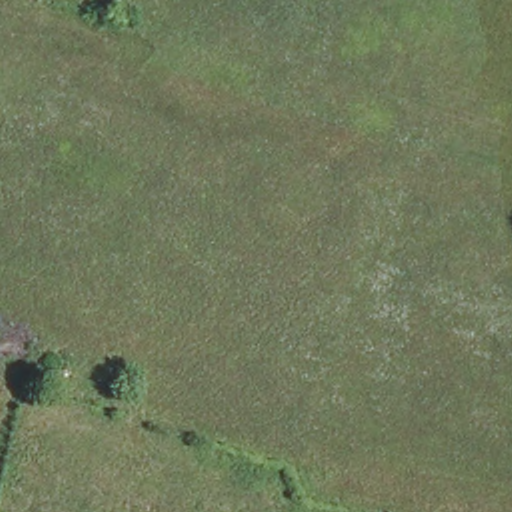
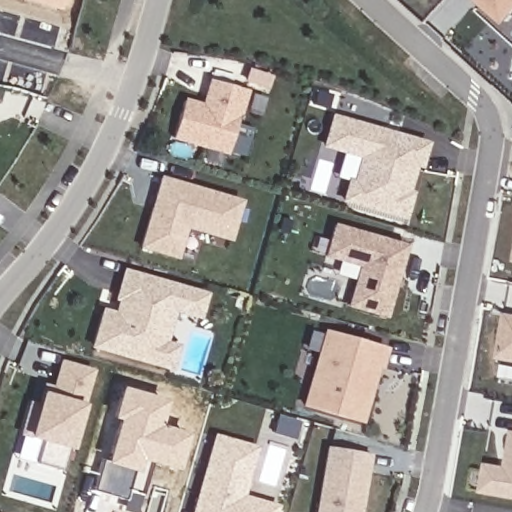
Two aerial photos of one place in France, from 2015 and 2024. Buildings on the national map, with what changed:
new [(59,11),(22,0),(63,0),(59,11)]
new [(512,24),(511,26),(480,1),(481,0),(512,0),(512,24)]
new [(247,89),(241,115),(238,115),(227,155),(172,140),(184,98),(201,102),(208,79),(247,89)]
new [(347,180),(337,178),(344,154),(322,148),(331,113),(429,141),(422,169),(417,168),(410,190),(414,191),(407,221),(341,202),(347,180)]
new [(243,200),(230,242),(186,229),(177,260),(138,249),(159,176),(243,200)]
new [(358,266),(323,257),(332,223),(407,244),(385,319),(346,307),(358,266)]
new [(208,292),(200,320),(175,313),(167,341),(180,344),(172,372),(89,348),(101,307),(114,311),(116,302),(112,300),(122,268),(208,292)]
new [(512,316),(512,359),(502,357),(510,316),(512,316)]
new [(323,329),(388,347),(382,369),(378,368),(362,424),(301,407),(323,329)]
new [(94,369),(84,406),(72,450),(64,470),(35,463),(44,442),(27,438),(28,436),(20,435),(29,400),(37,401),(40,391),(43,392),(42,383),(52,385),(60,359),(94,369)]
new [(119,386),(165,400),(159,425),(187,433),(176,471),(147,462),(140,495),(125,492),(123,500),(90,489),(99,459),(103,461),(115,420),(110,418),(119,386)]
new [(258,446),(245,495),(279,505),(277,512),(191,512),(213,433),(258,446)]
new [(506,466),(512,438),(512,499),(482,493),(486,462),(506,466)]
new [(371,453),(361,512),(315,512),(326,446),(371,453)]

